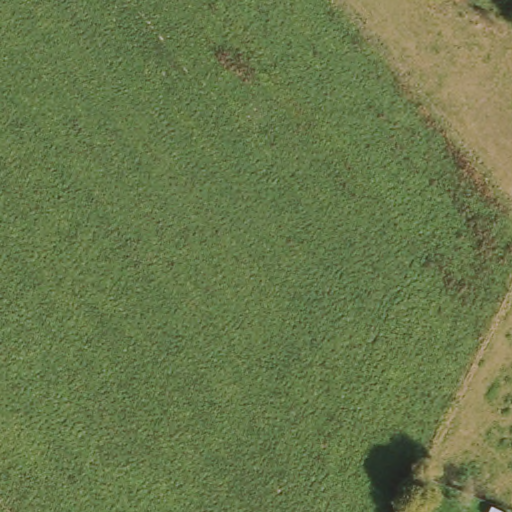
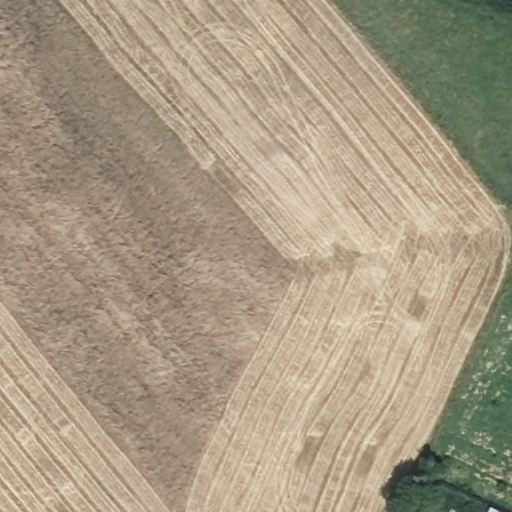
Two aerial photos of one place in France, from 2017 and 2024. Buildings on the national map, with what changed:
unchanged [(495,510),(500,512),(495,512),(495,510)]

